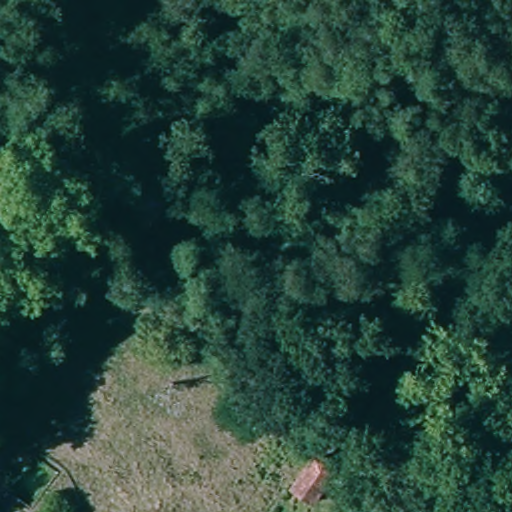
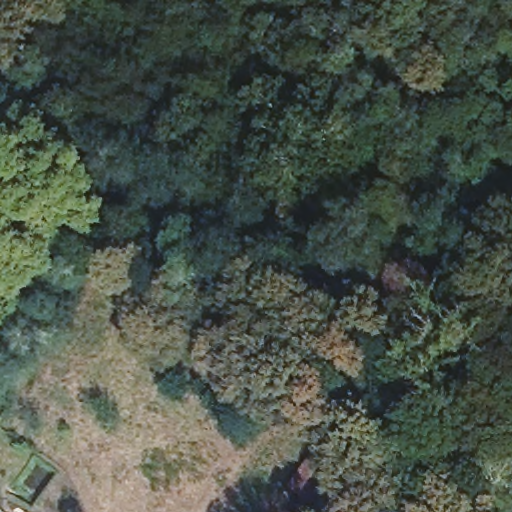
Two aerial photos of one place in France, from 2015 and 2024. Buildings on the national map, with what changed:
unchanged [(314,447),(342,465),(315,501),(289,482),(314,447)]

